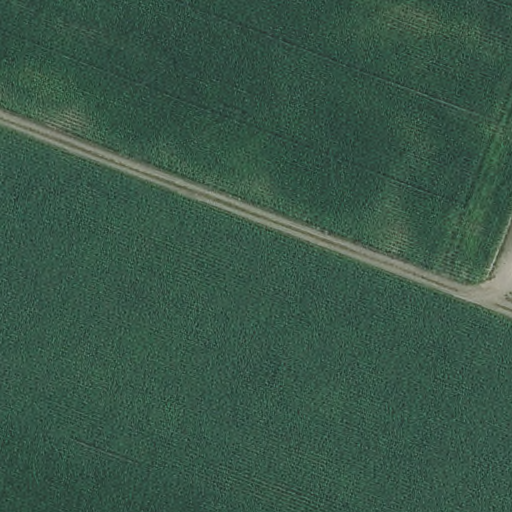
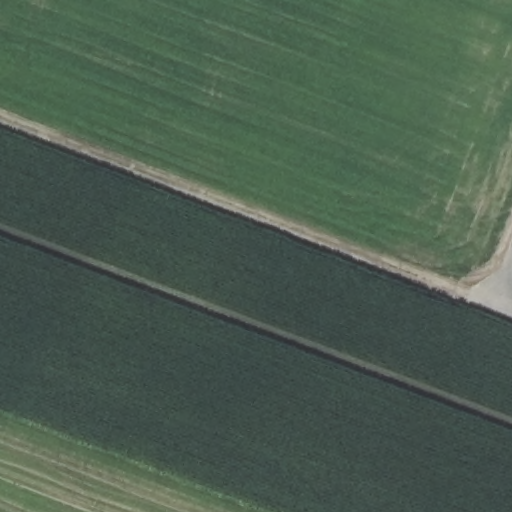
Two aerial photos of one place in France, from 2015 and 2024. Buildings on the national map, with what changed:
[]

